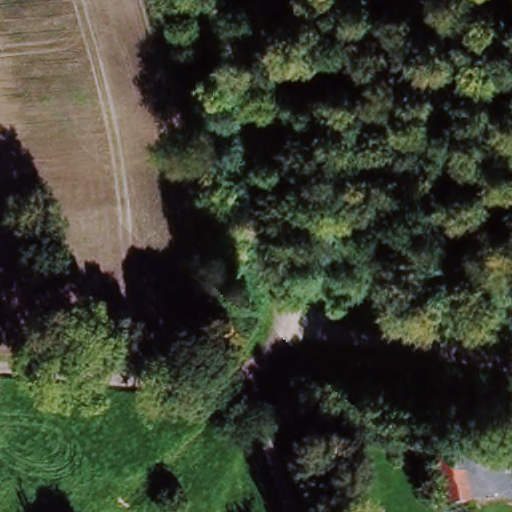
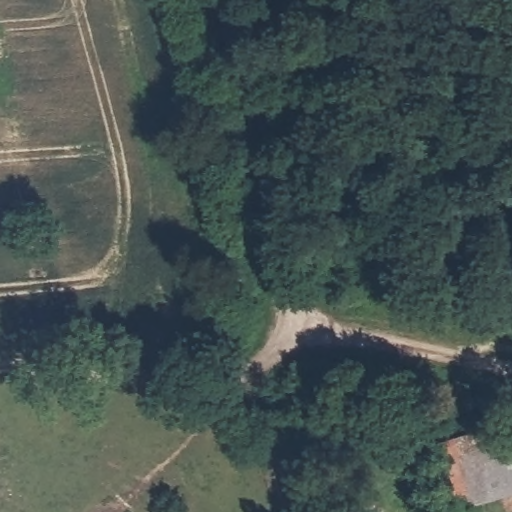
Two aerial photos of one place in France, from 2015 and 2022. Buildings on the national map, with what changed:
unchanged [(477,510),(467,512),(451,512),(430,428),(455,422),(477,510)]

